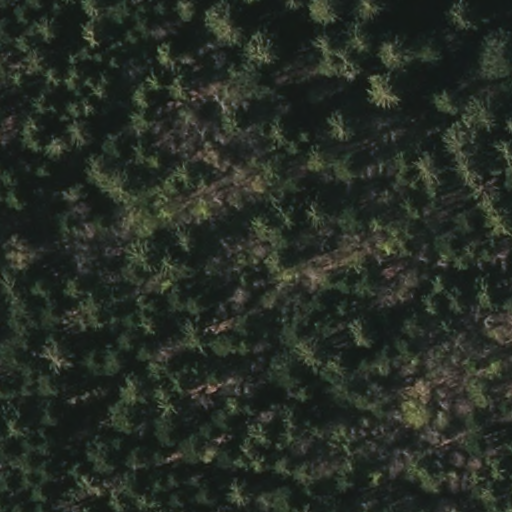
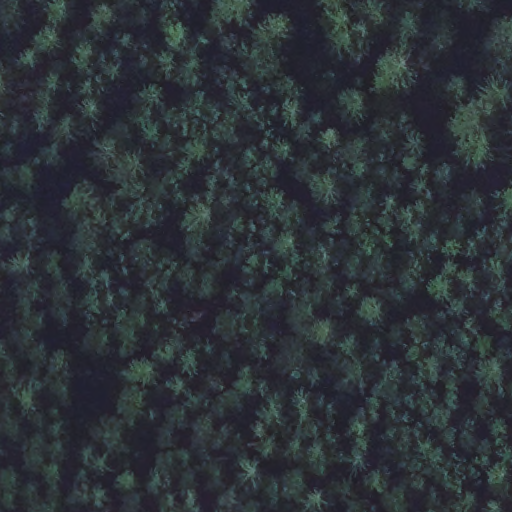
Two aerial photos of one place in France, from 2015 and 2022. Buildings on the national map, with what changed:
[]

